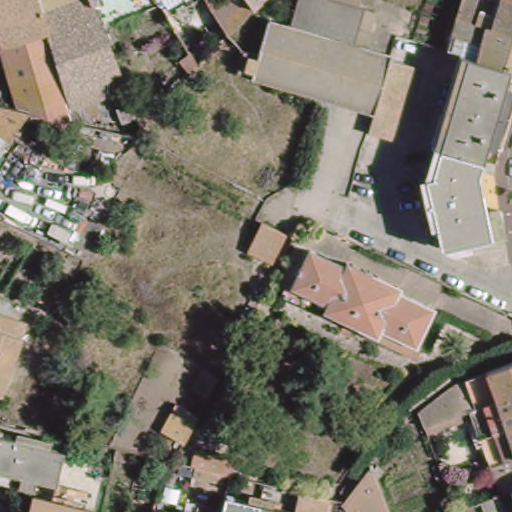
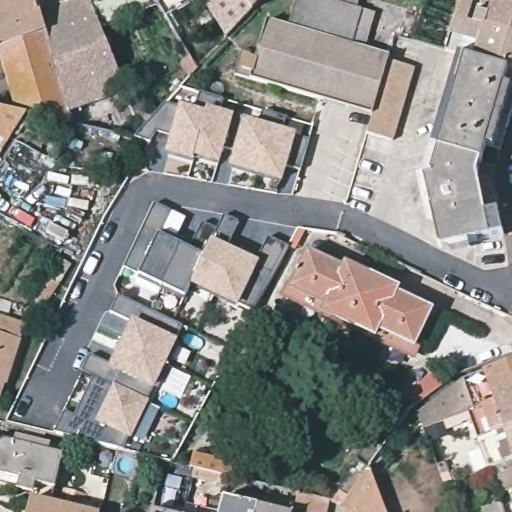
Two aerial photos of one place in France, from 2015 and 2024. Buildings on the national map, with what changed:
unchanged [(76,120),(27,109),(19,107),(0,43),(0,0),(37,0),(40,9),(46,29),(44,29),(71,107),(76,120)]
unchanged [(40,9),(37,0),(64,0),(41,8),(40,9)]
unchanged [(123,88),(71,107),(44,29),(40,9),(64,0),(91,0),(101,22),(124,87),(123,88)]
unchanged [(91,0),(156,0),(101,22),(91,0)]
unchanged [(156,0),(189,0),(165,15),(156,0)]
unchanged [(252,4),(227,31),(207,0),(249,0),(251,3),(252,4)]
unchanged [(372,111),(236,70),(243,47),(243,46),(256,50),(267,16),(288,21),(294,0),(357,0),(356,3),(375,9),(364,45),(390,52),(372,111)]
unchanged [(249,0),(255,0),(252,4),(249,0)]
unchanged [(486,29),(460,21),(466,0),(512,0),(512,34),(487,26),(486,29)]
unchanged [(486,29),(487,26),(512,34),(512,69),(479,60),(486,29)]
unchanged [(395,133),(368,125),(372,111),(390,52),(417,61),(395,133)]
unchanged [(197,69),(189,76),(178,64),(188,55),(197,69)]
unchanged [(426,198),(422,179),(428,178),(465,55),(471,57),(479,60),(512,69),(512,99),(497,149),(490,147),(481,176),(490,214),(502,212),(507,236),(445,249),(439,226),(433,227),(430,213),(426,198)]
new [(211,96),(192,161),(156,150),(160,135),(141,130),(161,108),(192,116),(199,93),(211,96)]
new [(235,104),(218,163),(194,156),(211,96),(235,104)]
unchanged [(0,147),(0,102),(19,107),(27,109),(0,147)]
unchanged [(140,131),(136,123),(131,111),(142,103),(154,116),(140,131)]
new [(269,129),(273,115),(297,121),(293,136),(308,141),(299,172),(284,167),(280,181),(256,174),(269,129)]
new [(231,118),(269,129),(256,174),(232,167),(236,154),(222,150),(231,118)]
new [(119,276),(154,203),(170,210),(162,229),(184,238),(192,242),(189,248),(203,220),(218,227),(180,305),(158,294),(119,276)]
new [(214,294),(191,283),(224,213),(239,220),(229,241),(237,245),(239,240),(260,250),(271,230),(291,240),(252,312),(214,294)]
demolished [(270,264),(247,252),(262,223),(286,235),(270,264)]
unchanged [(435,302),(417,340),(383,323),(382,323),(378,330),(327,304),(330,298),(330,297),(294,279),(314,242),(349,259),(352,253),(404,279),(400,285),(435,302)]
unchanged [(59,279),(50,274),(59,259),(62,260),(68,264),(69,265),(59,279)]
unchanged [(56,284),(44,305),(33,298),(46,278),(48,279),(56,284)]
unchanged [(327,304),(325,309),(323,308),(285,289),(291,278),(294,279),(330,297),(327,304)]
new [(125,440),(119,437),(113,449),(53,435),(63,413),(81,422),(86,409),(79,405),(92,379),(81,373),(89,357),(106,365),(117,344),(127,322),(109,313),(117,297),(182,328),(162,365),(142,402),(156,409),(139,446),(125,440)]
unchanged [(32,321),(12,377),(10,377),(4,392),(0,391),(0,310),(32,321)]
unchanged [(415,353),(414,354),(375,334),(378,330),(382,323),(417,340),(420,342),(420,343),(415,353)]
unchanged [(426,418),(422,412),(413,421),(407,416),(415,404),(459,372),(512,353),(512,386),(469,402),(426,418)]
unchanged [(206,399),(188,389),(200,370),(217,379),(206,399)]
unchanged [(469,402),(512,386),(512,418),(479,430),(469,402)]
unchanged [(182,444),(160,432),(174,406),(197,417),(182,444)]
unchanged [(479,430),(512,418),(512,450),(489,459),(479,430)]
unchanged [(0,480),(0,432),(24,438),(54,445),(67,448),(59,484),(39,480),(37,489),(0,480)]
unchanged [(499,487),(489,459),(512,450),(512,482),(500,487),(499,487)]
unchanged [(191,479),(194,469),(189,468),(192,457),(207,460),(204,472),(227,478),(225,487),(191,479)]
unchanged [(349,493),(345,499),(339,494),(338,493),(355,472),(361,477),(370,464),(373,471),(388,512),(356,512),(349,493)]
unchanged [(68,512),(31,512),(35,495),(55,499),(71,503),(68,512)]
unchanged [(302,495),(332,502),(329,512),(298,512),(302,495)]
unchanged [(261,512),(224,512),(228,497),(263,506),(261,512)]
unchanged [(71,503),(80,505),(104,511),(104,512),(68,512),(71,503)]
unchanged [(263,506),(291,512),(261,512),(263,506)]
unchanged [(157,511),(164,512),(156,512),(157,511)]

